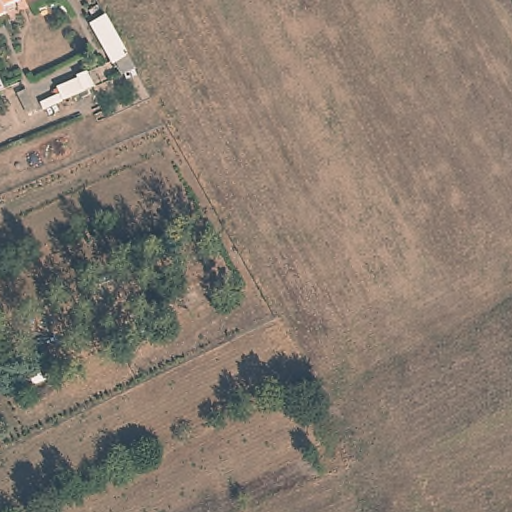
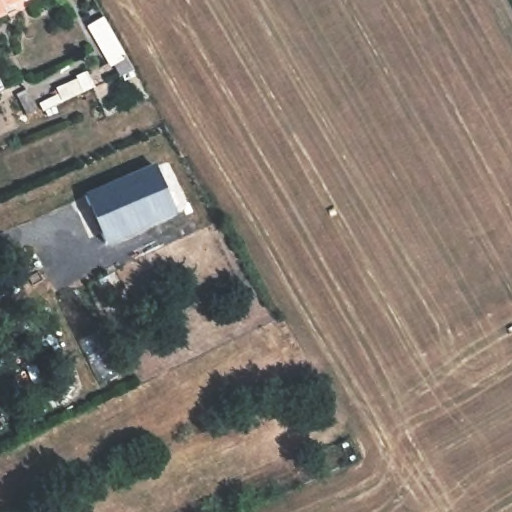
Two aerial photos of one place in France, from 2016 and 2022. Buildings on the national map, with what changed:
unchanged [(0,0),(10,0),(0,5),(0,0)]
unchanged [(0,11),(0,6),(1,10),(0,11)]
unchanged [(129,68),(117,74),(109,56),(105,58),(85,20),(98,14),(129,68)]
unchanged [(0,88),(0,79),(4,86),(0,88)]
new [(155,166),(176,213),(106,243),(86,196),(155,166)]

